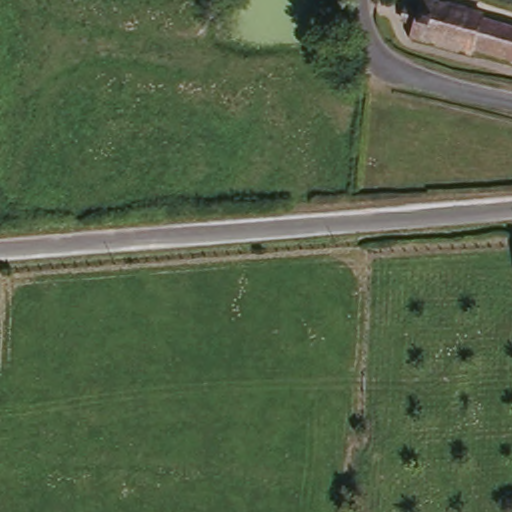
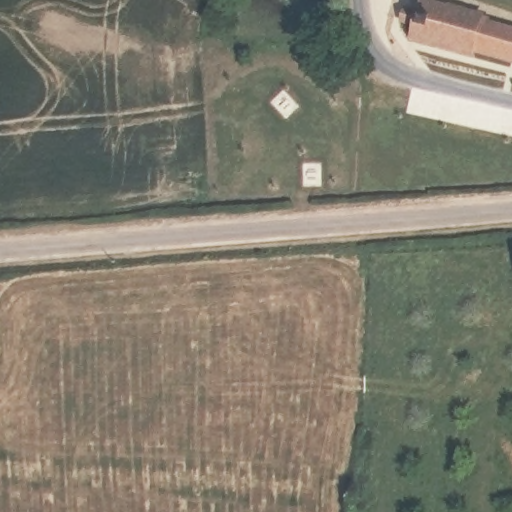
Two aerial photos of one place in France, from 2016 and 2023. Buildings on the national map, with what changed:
unchanged [(483,20),(481,25),(512,34),(512,59),(474,50),(473,55),(411,40),(420,3),(483,20)]

